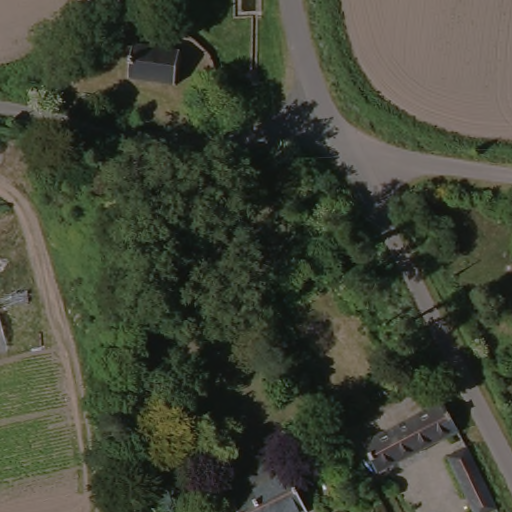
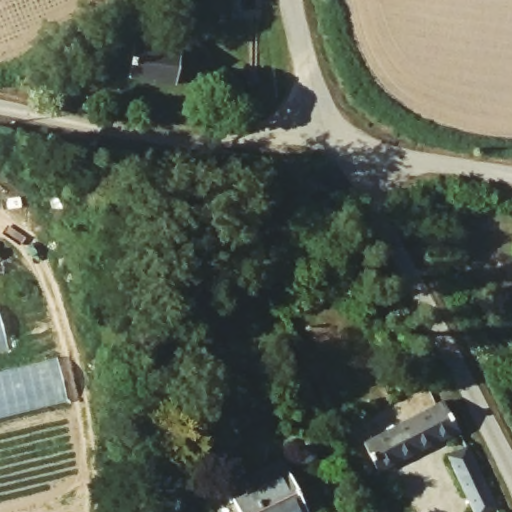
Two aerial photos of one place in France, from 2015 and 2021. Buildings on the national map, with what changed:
unchanged [(177,89),(127,81),(132,47),(180,55),(177,89)]
unchanged [(5,347),(0,348),(0,327),(5,347)]
new [(57,359),(67,399),(0,415),(0,373),(57,359)]
unchanged [(380,475),(377,476),(362,446),(369,442),(440,405),(456,435),(380,475)]
unchanged [(441,466),(461,455),(490,512),(465,512),(441,466)]
unchanged [(222,495),(239,487),(282,468),(289,486),(291,485),(302,512),(229,512),(222,495)]

